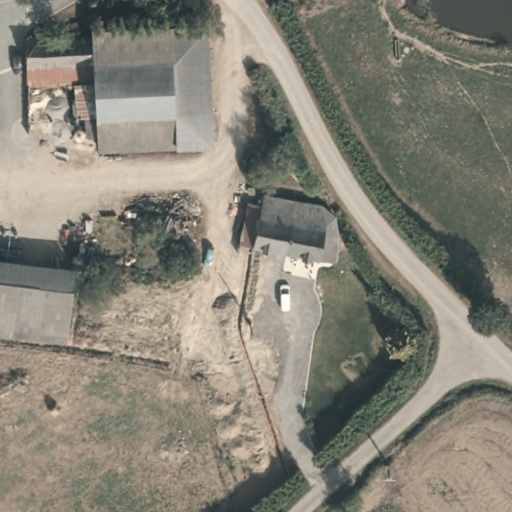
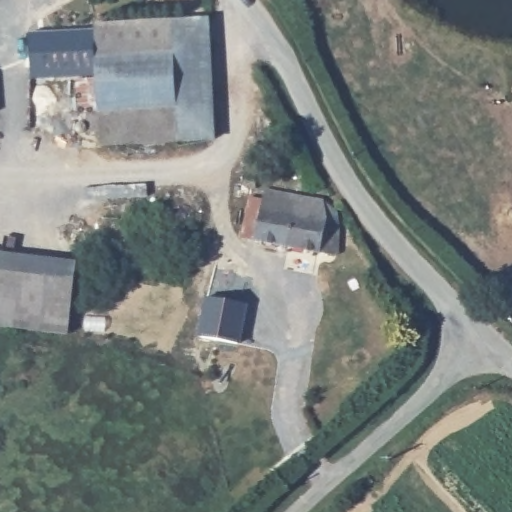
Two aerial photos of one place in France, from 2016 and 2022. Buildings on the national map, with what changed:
unchanged [(216,138),(102,144),(100,132),(88,131),(87,111),(81,110),(79,77),(77,32),(96,32),(96,25),(187,20),(209,19),(211,57),(216,138)]
unchanged [(77,32),(79,77),(31,79),(29,34),(77,32)]
unchanged [(330,200),(344,212),(346,233),(343,256),(263,240),(248,237),(256,196),(270,199),(271,189),(330,200)]
unchanged [(36,269),(77,274),(68,346),(54,344),(0,338),(0,265),(36,269)]
new [(205,296),(248,304),(241,344),(198,336),(205,296)]

